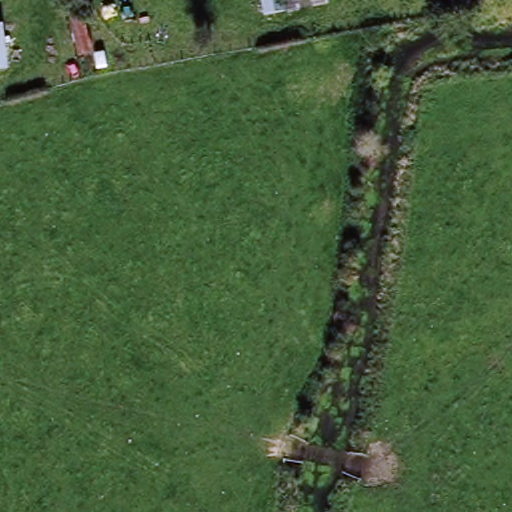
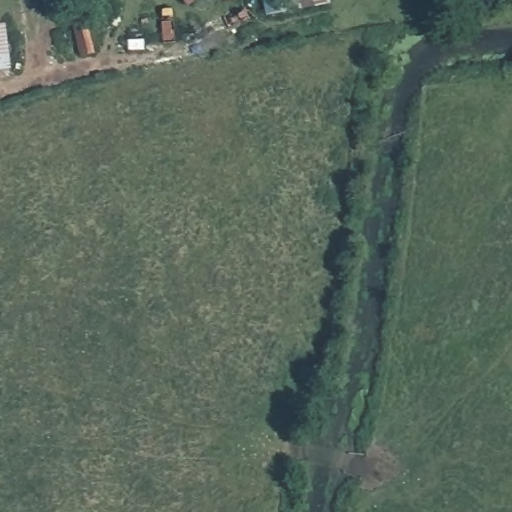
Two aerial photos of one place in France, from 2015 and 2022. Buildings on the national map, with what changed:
unchanged [(262,0),(287,0),(290,15),(266,21),(262,0)]
unchanged [(77,26),(91,23),(97,58),(82,60),(77,26)]
unchanged [(6,29),(12,74),(0,76),(0,29),(6,29)]

